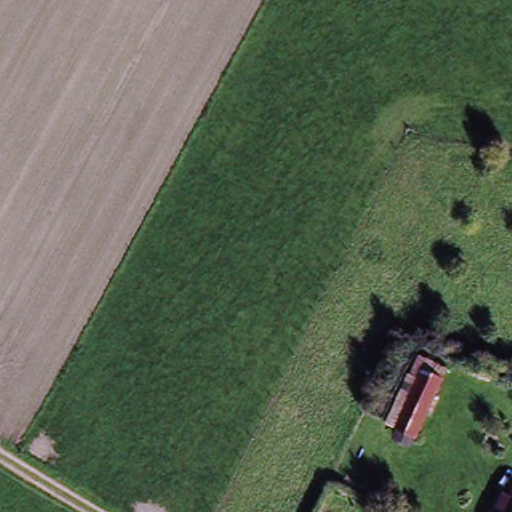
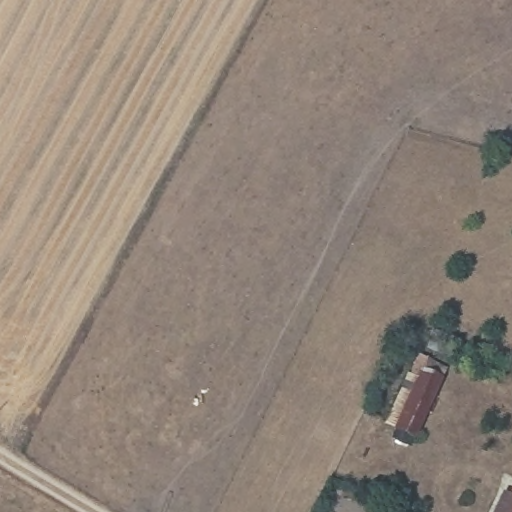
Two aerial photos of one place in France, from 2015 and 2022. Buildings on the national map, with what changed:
unchanged [(408,376),(418,357),(449,372),(417,441),(395,430),(384,425),(408,376)]
unchanged [(497,511),(504,495),(512,499),(512,512),(490,512),(491,509),(497,511)]

